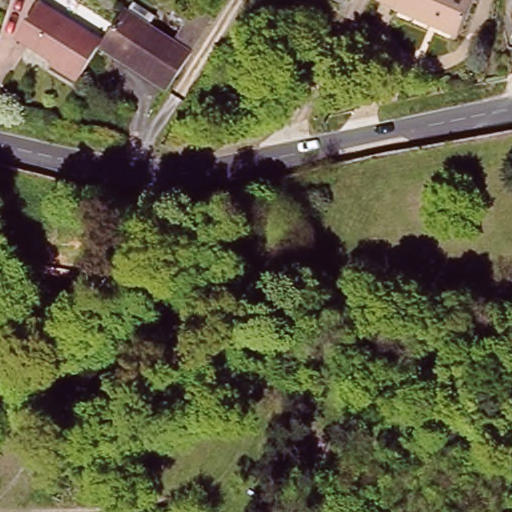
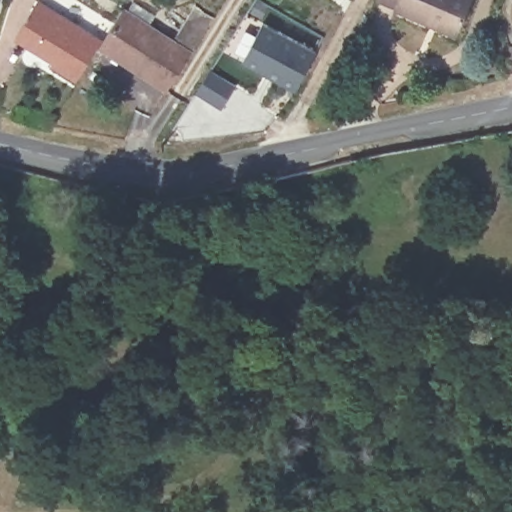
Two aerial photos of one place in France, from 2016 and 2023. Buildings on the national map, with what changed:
unchanged [(81,81),(53,63),(56,59),(17,35),(40,0),(46,0),(107,39),(102,48),(81,81)]
unchanged [(453,31),(389,3),(390,0),(389,0),(467,0),(453,31)]
unchanged [(102,48),(107,39),(127,10),(176,42),(199,6),(216,17),(168,91),(102,48)]
new [(242,62),(262,22),(316,52),(295,90),(242,62)]

